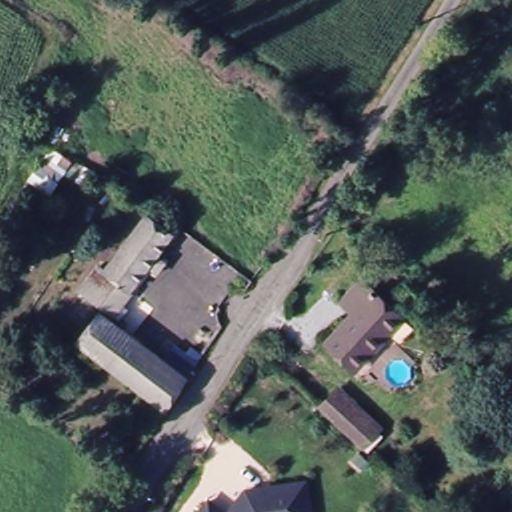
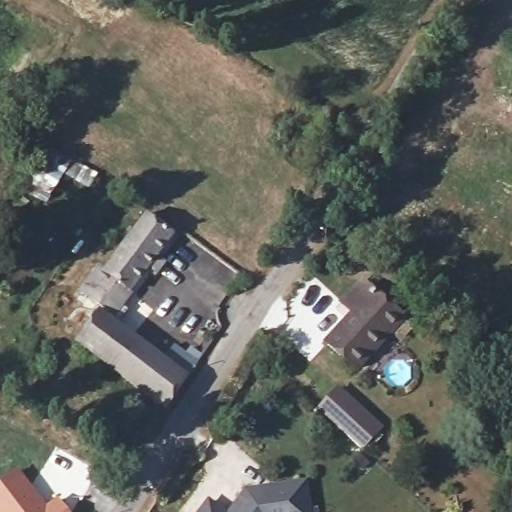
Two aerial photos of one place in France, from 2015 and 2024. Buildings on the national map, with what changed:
unchanged [(110,153),(95,178),(52,152),(20,130),(32,107),(110,153)]
unchanged [(128,413),(143,395),(78,345),(99,318),(79,304),(81,299),(102,271),(106,274),(146,220),(166,232),(170,226),(179,232),(122,308),(125,319),(117,330),(153,356),(160,347),(172,356),(176,350),(184,355),(189,348),(204,359),(167,413),(164,410),(150,429),(128,413)]
unchanged [(355,318),(342,305),(370,274),(410,311),(355,372),(328,348),(355,318)]
unchanged [(340,387),(355,399),(382,423),(363,444),(357,438),(321,408),(340,387)]
new [(46,505),(57,496),(69,512),(0,512),(0,484),(20,470),(46,505)]
unchanged [(288,486),(293,512),(225,512),(236,497),(288,486)]
unchanged [(207,512),(197,512),(200,508),(207,512)]

